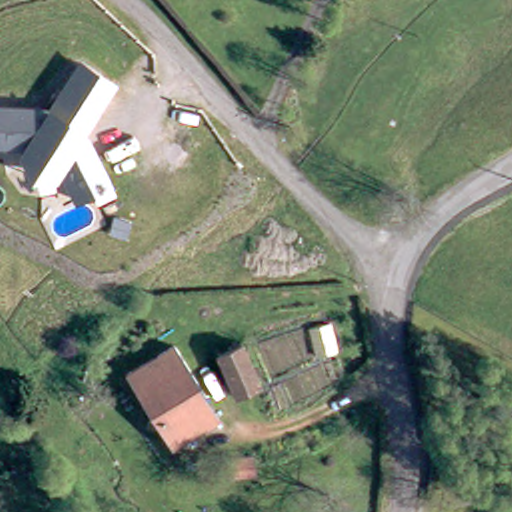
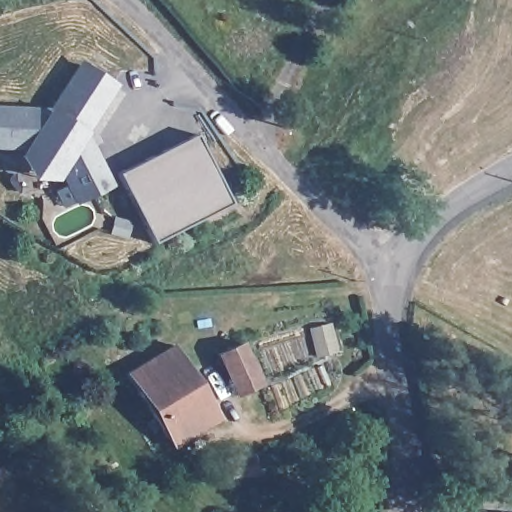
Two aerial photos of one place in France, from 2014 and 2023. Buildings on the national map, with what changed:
unchanged [(119,86),(88,134),(116,185),(76,207),(59,179),(28,178),(17,150),(0,150),(0,103),(46,106),(79,59),(119,86)]
new [(194,134),(229,203),(151,240),(118,174),(194,134)]
new [(334,322),(341,349),(316,358),(308,328),(334,322)]
unchanged [(184,463),(169,439),(162,443),(157,434),(164,431),(136,389),(125,374),(170,344),(189,332),(195,338),(201,347),(181,361),(228,435),(184,463)]
unchanged [(260,383),(240,393),(219,358),(243,345),(260,383)]
unchanged [(265,479),(243,481),(240,464),(265,461),(265,479)]

